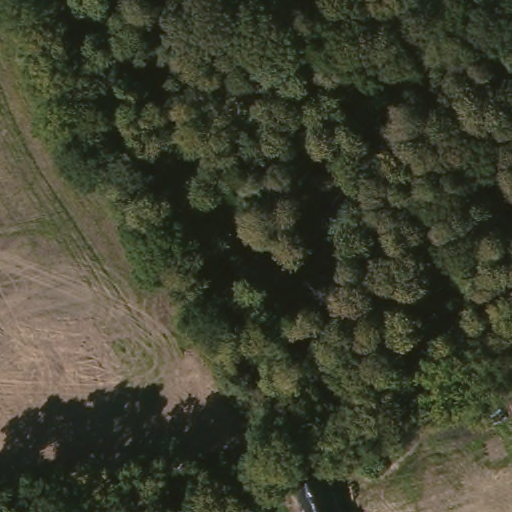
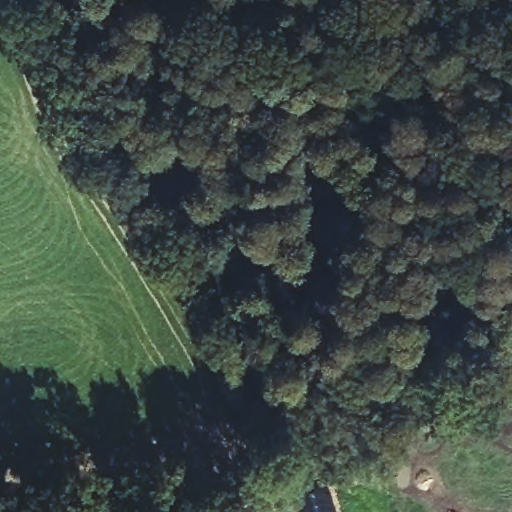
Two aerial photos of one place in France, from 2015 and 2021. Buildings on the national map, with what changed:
[]

